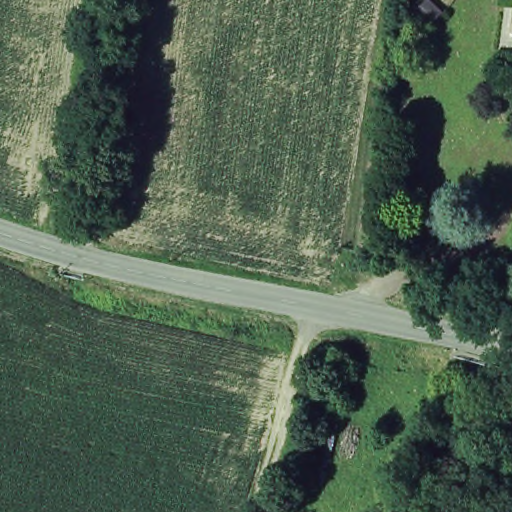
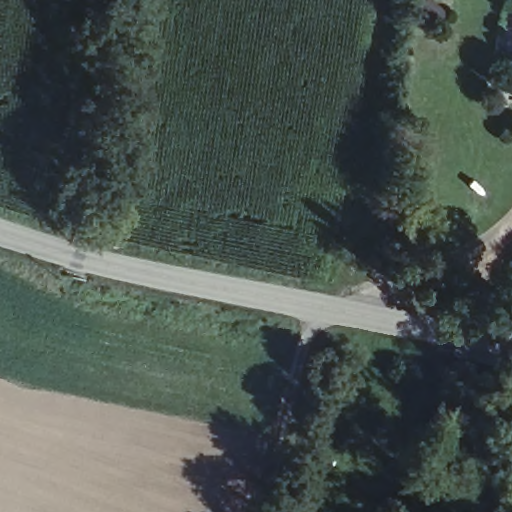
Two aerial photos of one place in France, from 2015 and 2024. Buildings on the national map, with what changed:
unchanged [(512,2),(512,28),(508,27),(512,2)]

